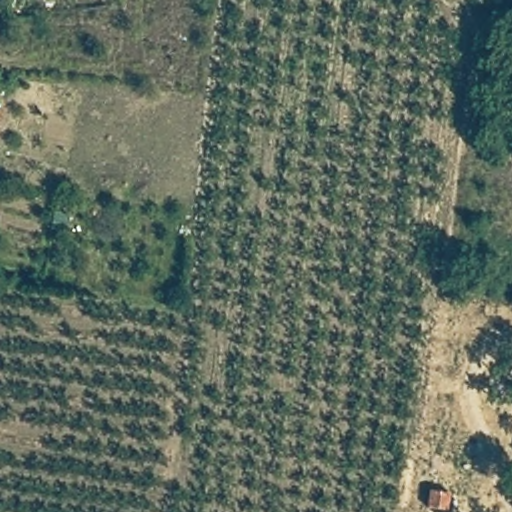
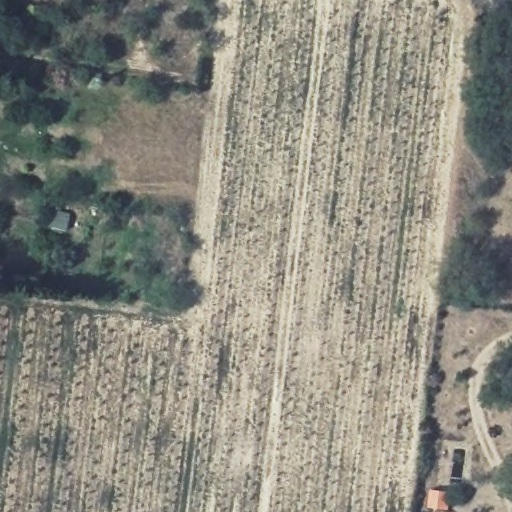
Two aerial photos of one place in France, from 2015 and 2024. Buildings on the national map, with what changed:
unchanged [(432,489),(452,492),(448,507),(427,505),(432,489)]

